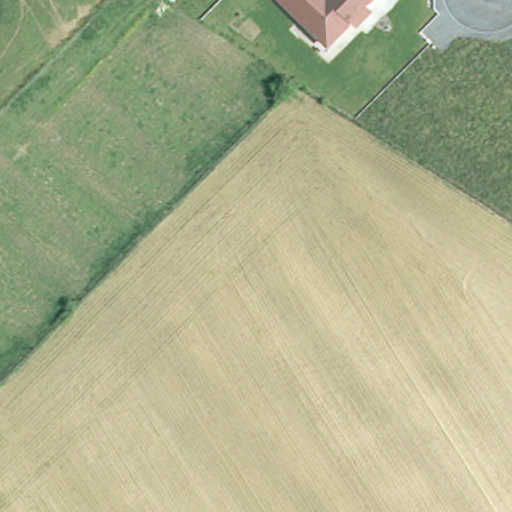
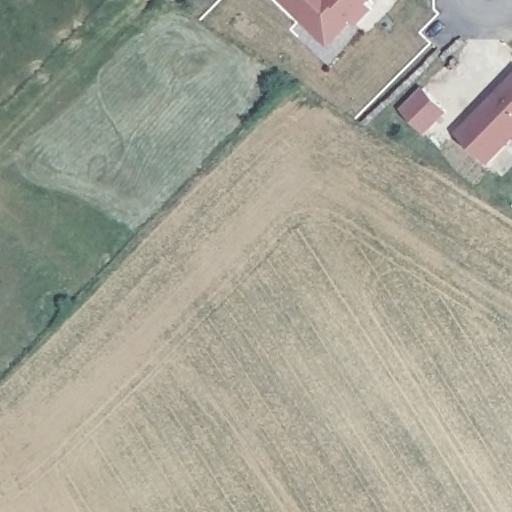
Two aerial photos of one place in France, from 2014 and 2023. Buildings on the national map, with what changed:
unchanged [(370,0),(369,1),(374,6),(357,24),(353,19),(329,44),(283,0),(370,0)]
new [(456,131),(512,72),(512,140),(491,164),(456,131)]

